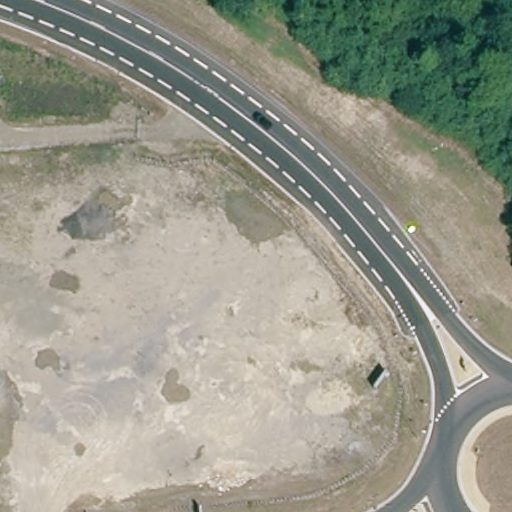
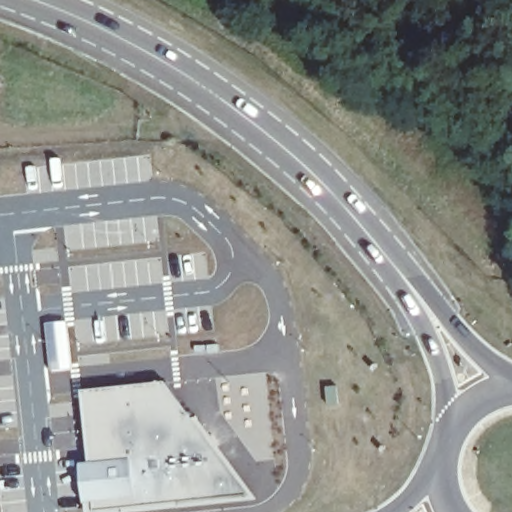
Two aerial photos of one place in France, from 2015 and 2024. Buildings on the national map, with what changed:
new [(166,383),(257,501),(157,512),(86,512),(80,465),(92,463),(84,392),(166,383)]
new [(0,486),(3,512),(0,512),(0,486)]

